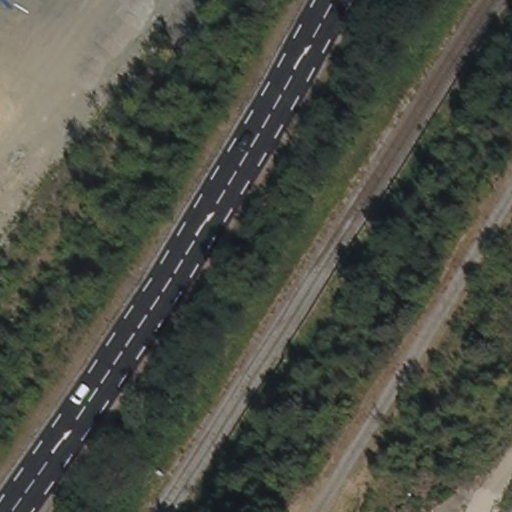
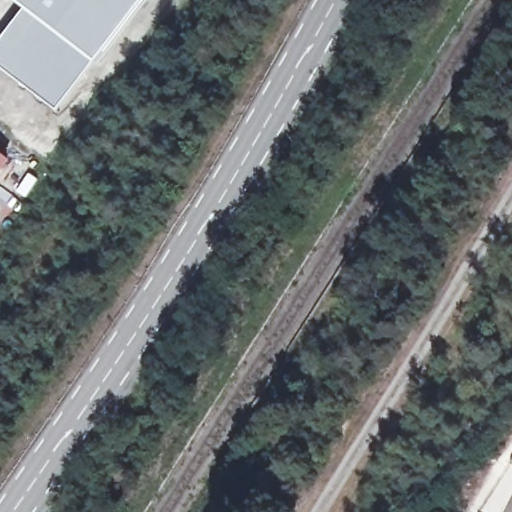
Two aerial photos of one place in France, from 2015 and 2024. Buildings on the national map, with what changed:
new [(14,2),(16,0),(145,0),(58,114),(0,68),(0,43),(24,10),(14,2)]
new [(0,178),(0,157),(10,165),(0,178)]

